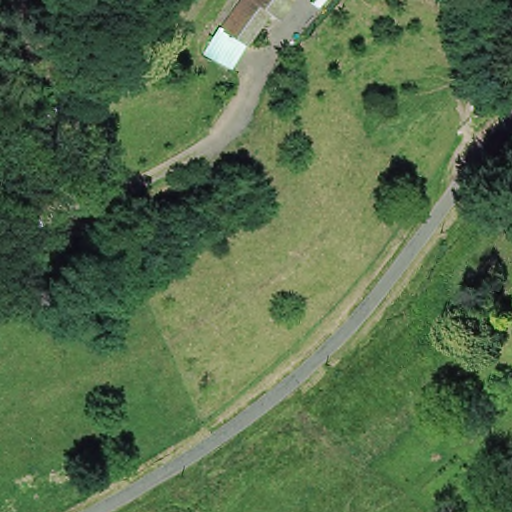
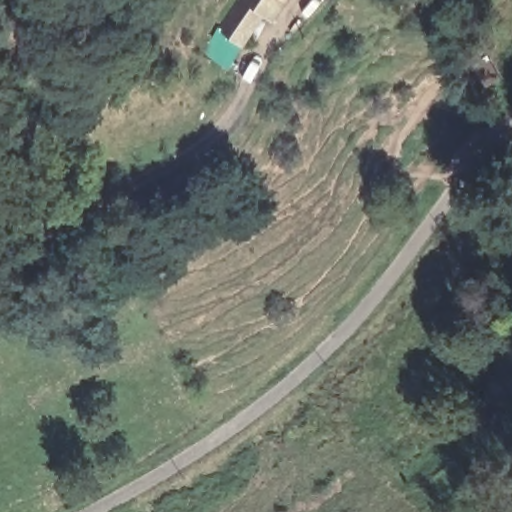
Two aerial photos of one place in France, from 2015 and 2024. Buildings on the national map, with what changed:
unchanged [(230,33),(254,0),(303,0),(264,56),(230,33)]

